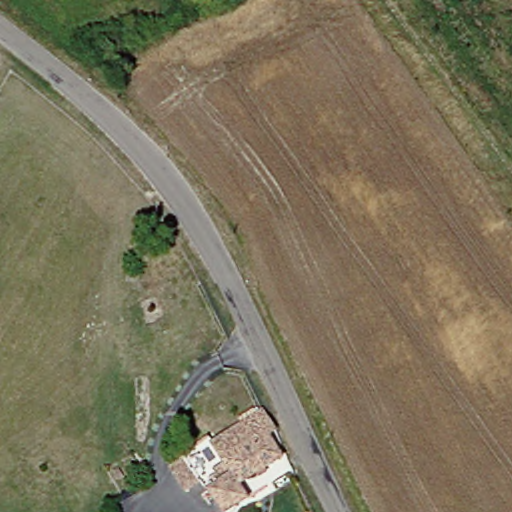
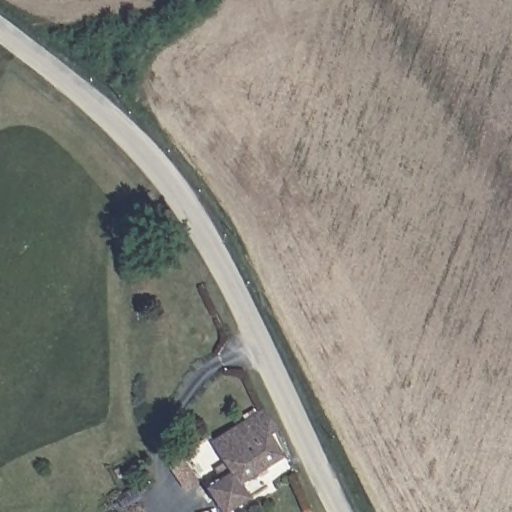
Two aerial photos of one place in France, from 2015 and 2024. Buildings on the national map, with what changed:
unchanged [(227,463),(215,444),(267,410),(281,432),(273,436),(289,460),(246,489),(254,503),(237,512),(222,512),(209,488),(234,475),(227,463)]

